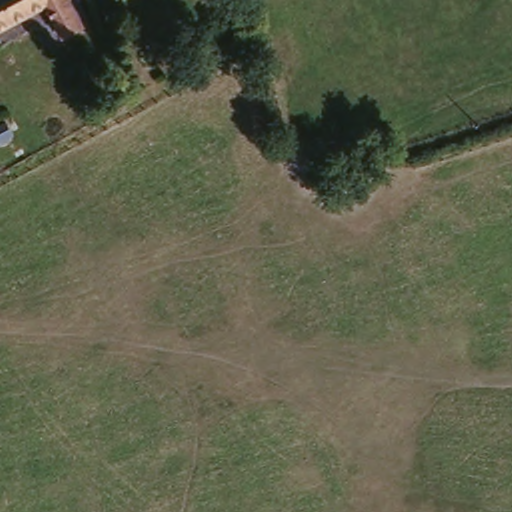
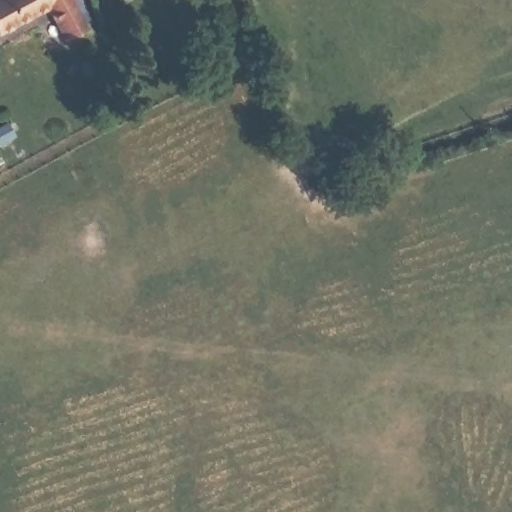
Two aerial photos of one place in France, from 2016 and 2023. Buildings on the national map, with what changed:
unchanged [(69,5),(86,37),(61,47),(45,19),(0,41),(0,0),(78,0),(69,5)]

